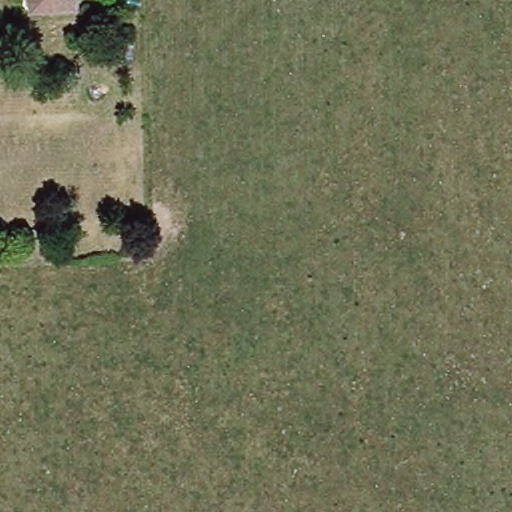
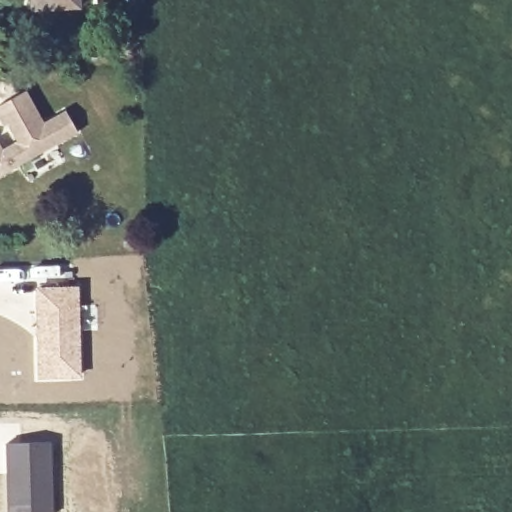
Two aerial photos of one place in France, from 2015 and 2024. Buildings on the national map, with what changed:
unchanged [(76,5),(30,7),(30,0),(75,0),(76,5)]
new [(19,144),(11,130),(9,132),(0,117),(0,108),(27,92),(46,125),(68,112),(80,134),(0,179),(0,144),(5,152),(19,144)]
new [(79,285),(81,380),(35,381),(35,285),(79,285)]
new [(52,512),(6,512),(5,443),(51,441),(52,512)]

